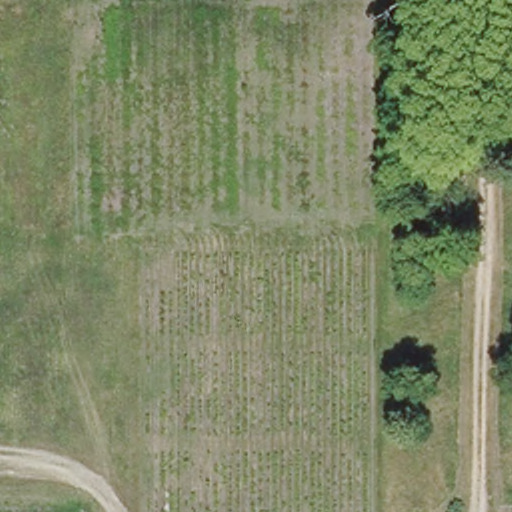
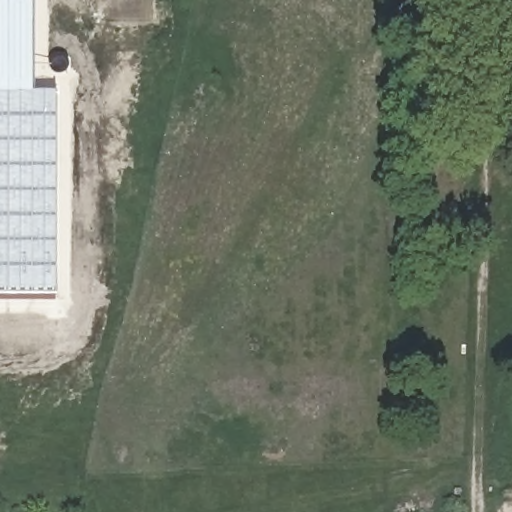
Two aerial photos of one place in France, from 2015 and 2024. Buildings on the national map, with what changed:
new [(34,91),(55,91),(56,294),(0,294),(0,0),(34,0),(34,91)]

